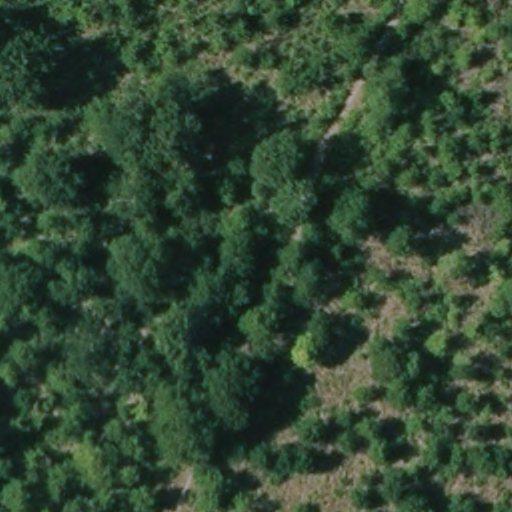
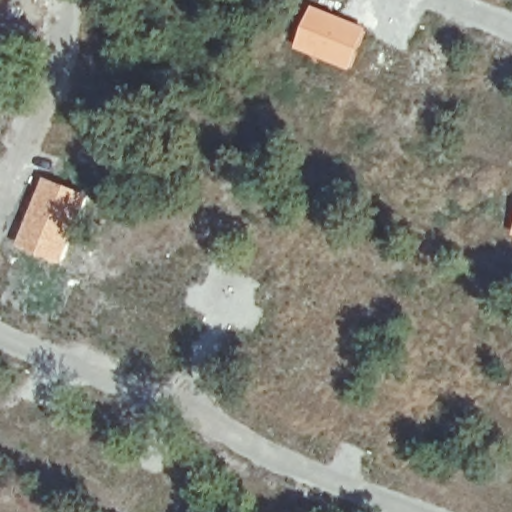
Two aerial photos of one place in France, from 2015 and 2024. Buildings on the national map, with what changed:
new [(311,6),(366,28),(348,72),(292,49),(311,6)]
new [(44,177),(91,197),(62,267),(15,248),(44,177)]

